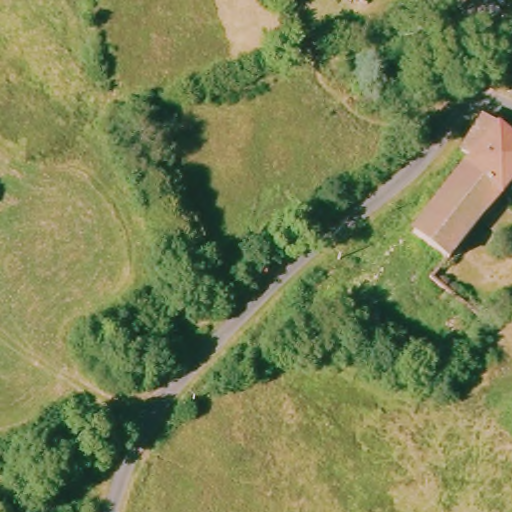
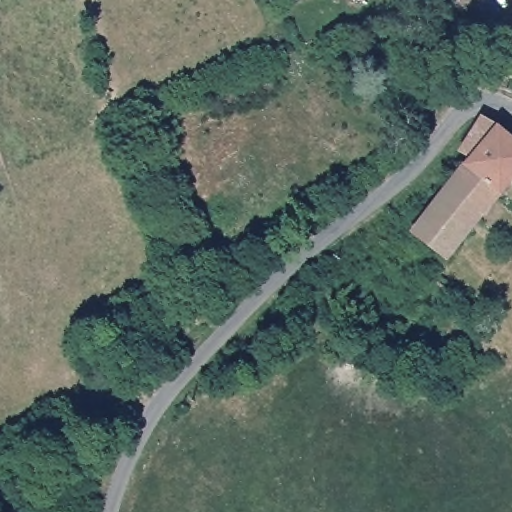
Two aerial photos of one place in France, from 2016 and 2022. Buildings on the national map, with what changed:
unchanged [(465,0),(483,0),(512,44),(512,50),(493,62),(456,6),(465,0)]
unchanged [(412,234),(473,165),(464,155),(491,130),(502,132),(512,140),(512,195),(450,268),(445,264),(412,234)]

